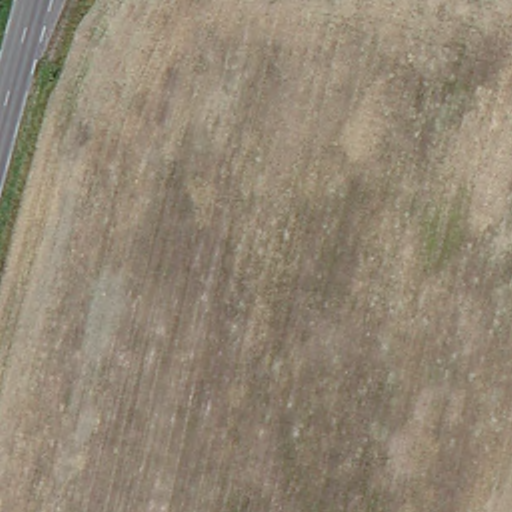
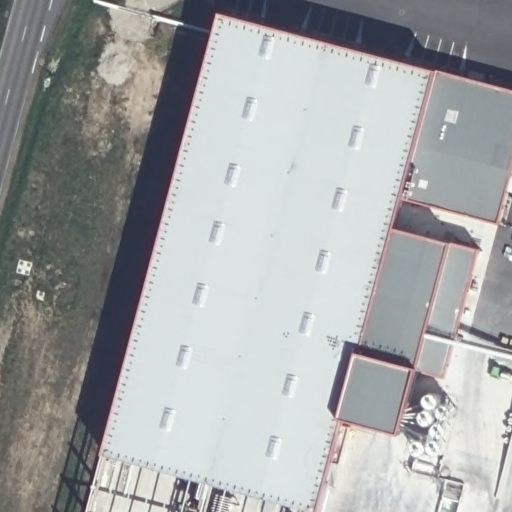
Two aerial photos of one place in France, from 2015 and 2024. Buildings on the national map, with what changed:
new [(404,196),(396,226),(454,242),(481,249),(447,378),(419,368),(398,363),(362,353),(344,416),(319,512),(90,512),(223,11),(439,69),(512,89),(512,181),(501,223),(404,196)]
new [(402,432),(344,416),(362,353),(419,368),(402,432)]

